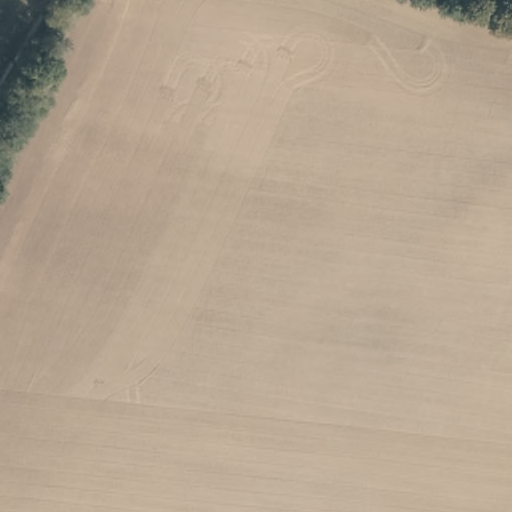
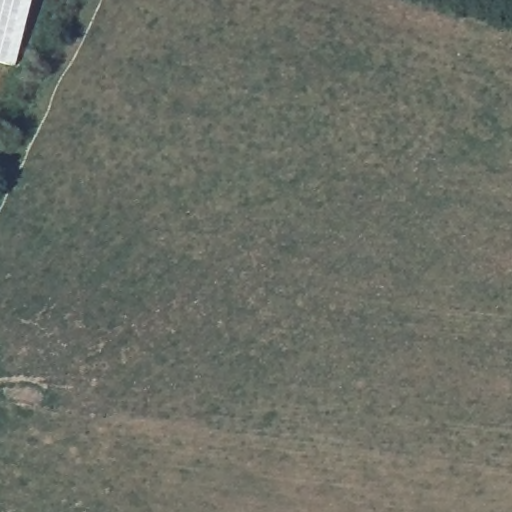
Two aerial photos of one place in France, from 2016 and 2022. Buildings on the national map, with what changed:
new [(17,67),(0,62),(0,0),(38,0),(17,67)]

